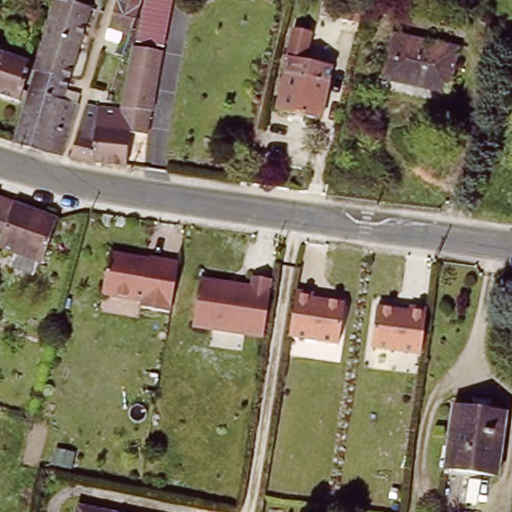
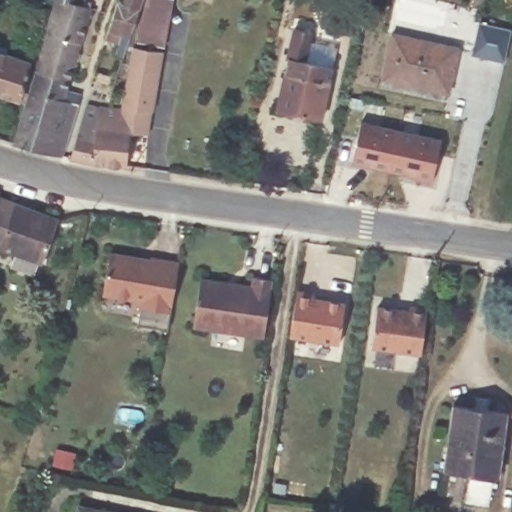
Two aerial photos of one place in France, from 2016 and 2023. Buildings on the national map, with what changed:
unchanged [(51,0),(83,0),(90,2),(71,72),(33,60),(51,0)]
unchanged [(121,51),(114,49),(120,28),(107,24),(115,0),(139,0),(121,51)]
new [(143,0),(170,0),(161,47),(135,43),(143,0)]
unchanged [(346,22),(348,16),(331,12),(333,0),(368,0),(362,26),(346,22)]
new [(287,56),(293,29),(314,32),(306,60),(287,56)]
unchanged [(462,48),(452,91),(387,77),(397,34),(462,48)]
unchanged [(76,129),(93,133),(95,100),(110,101),(119,101),(129,42),(161,47),(149,127),(129,125),(124,162),(100,160),(74,154),(68,152),(76,129)]
unchanged [(18,95),(0,90),(0,45),(31,55),(18,95)]
unchanged [(333,66),(322,116),(276,106),(287,56),(333,66)]
unchanged [(33,60),(71,72),(68,84),(79,87),(76,97),(78,97),(62,150),(11,139),(12,136),(33,60)]
new [(430,184),(412,180),(413,176),(351,163),(360,121),(441,140),(430,184)]
unchanged [(45,261),(43,263),(38,276),(14,267),(18,254),(0,247),(0,197),(60,218),(45,261)]
unchanged [(170,263),(166,310),(144,306),(146,301),(101,295),(107,252),(170,263)]
unchanged [(248,287),(251,277),(267,280),(260,335),(191,327),(199,280),(248,287)]
unchanged [(346,302),(339,345),(288,338),(295,292),(346,302)]
unchanged [(427,312),(422,355),(369,350),(376,305),(427,312)]
unchanged [(457,405),(508,411),(501,473),(449,467),(457,405)]
unchanged [(114,512),(84,512),(85,506),(114,512)]

